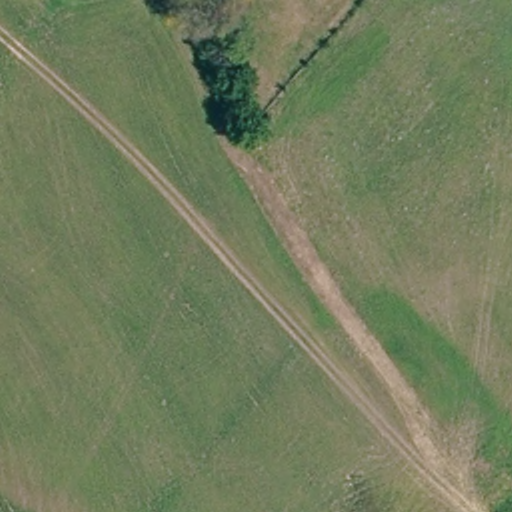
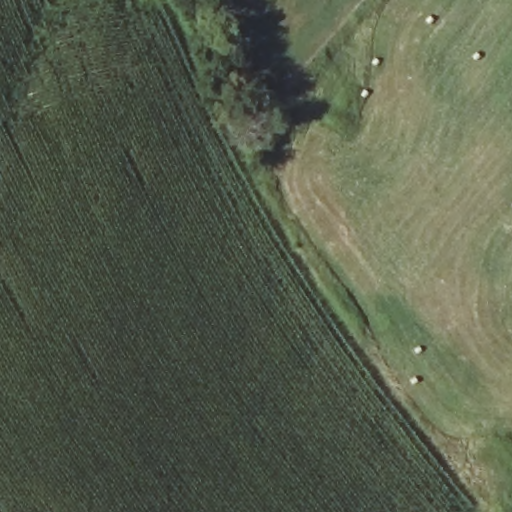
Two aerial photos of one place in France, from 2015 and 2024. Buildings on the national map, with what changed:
[]

